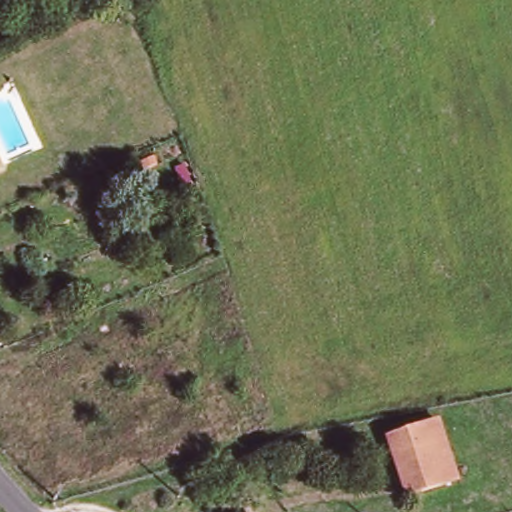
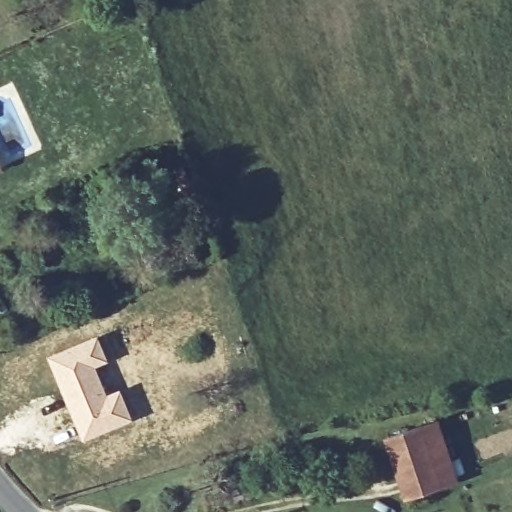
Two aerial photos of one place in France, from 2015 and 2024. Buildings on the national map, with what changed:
new [(97,335),(109,362),(96,367),(106,393),(120,387),(134,420),(81,441),(45,356),(97,335)]
unchanged [(411,499),(390,439),(438,422),(460,482),(411,499)]

